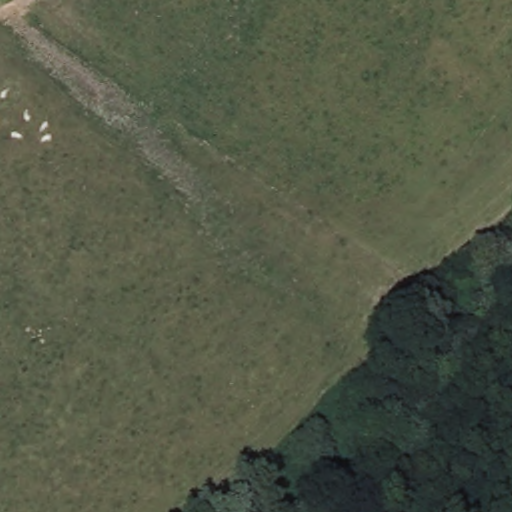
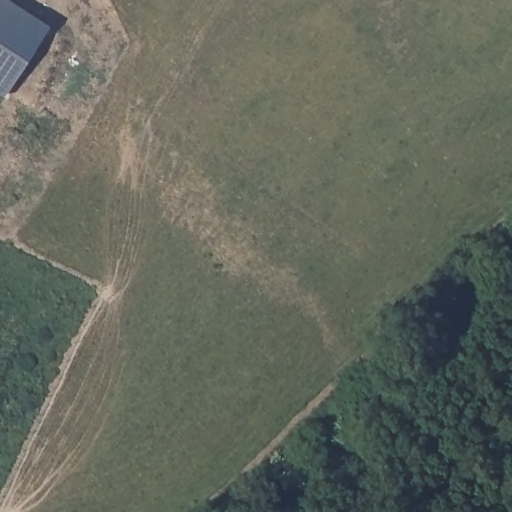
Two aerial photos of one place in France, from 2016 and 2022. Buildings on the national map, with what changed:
new [(49,27),(6,94),(0,90),(0,0),(6,0),(49,27)]

